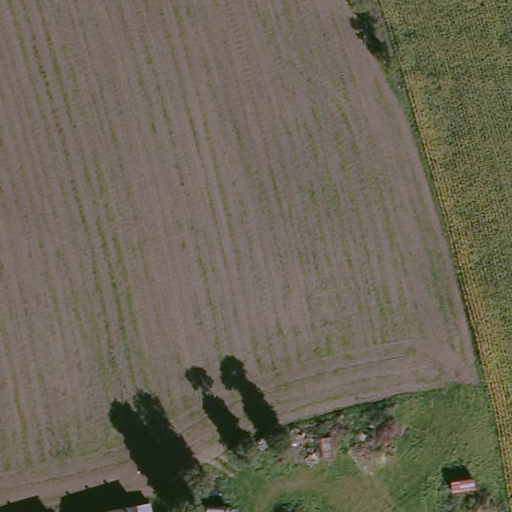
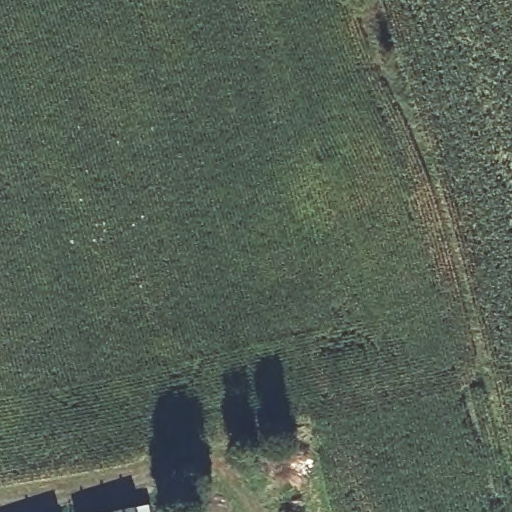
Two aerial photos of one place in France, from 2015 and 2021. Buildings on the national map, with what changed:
unchanged [(147,507),(148,512),(124,512),(129,511),(147,507)]

